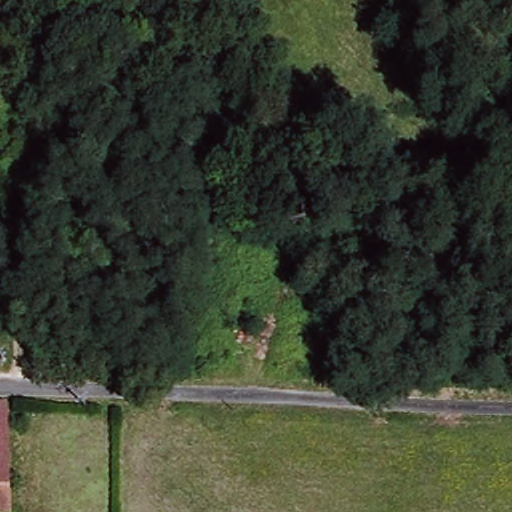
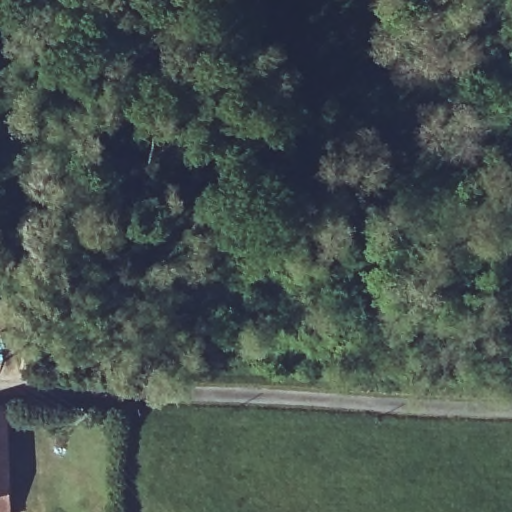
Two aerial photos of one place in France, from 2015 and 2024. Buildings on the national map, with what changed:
unchanged [(0,406),(6,406),(11,512),(0,512),(0,406)]

